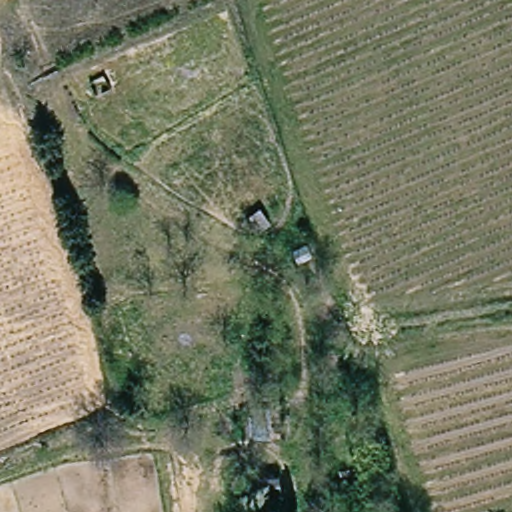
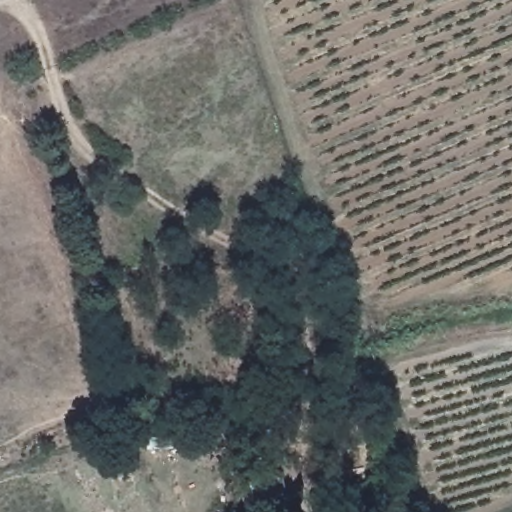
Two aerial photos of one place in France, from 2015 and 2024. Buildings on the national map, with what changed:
unchanged [(248,217),(265,204),(279,223),(261,233),(248,217)]
unchanged [(253,509),(251,476),(284,475),(289,507),(253,509)]

